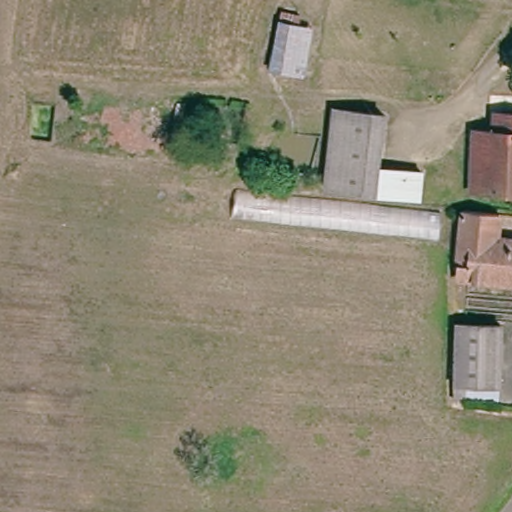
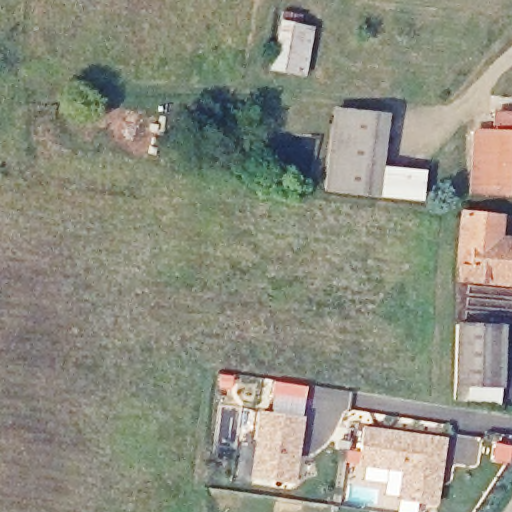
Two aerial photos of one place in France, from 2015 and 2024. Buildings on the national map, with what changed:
unchanged [(318,22),(310,72),(266,66),(273,15),(318,22)]
unchanged [(498,128),(499,113),(512,114),(512,193),(475,193),(478,130),(498,128)]
unchanged [(387,119),(383,162),(380,194),(378,194),(330,190),(336,114),(387,119)]
unchanged [(380,194),(383,162),(431,165),(428,197),(380,194)]
unchanged [(507,239),(512,239),(512,286),(465,285),(467,211),(508,216),(507,239)]
unchanged [(509,335),(507,396),(459,396),(464,332),(509,335)]
new [(249,478),(258,411),(303,417),(293,484),(249,478)]
new [(396,500),(400,472),(357,467),(362,427),(444,438),(435,505),(396,500)]

